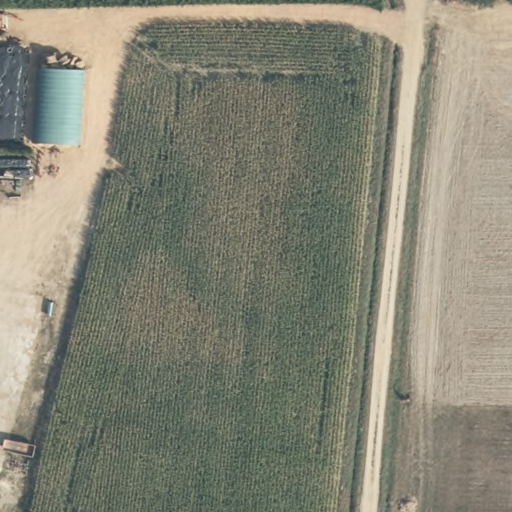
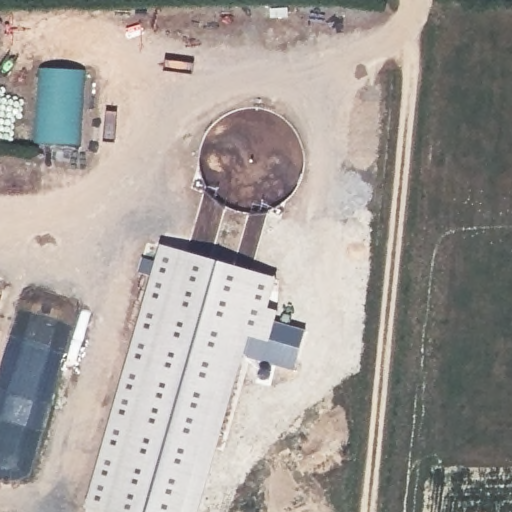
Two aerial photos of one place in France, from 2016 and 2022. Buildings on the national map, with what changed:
new [(41,67),(83,69),(78,143),(36,141),(41,67)]
new [(161,244),(278,276),(269,307),(278,309),(270,341),(249,335),(234,330),(182,512),(108,512),(85,505),(161,244)]
new [(249,335),(198,512),(182,512),(234,330),(249,335)]

